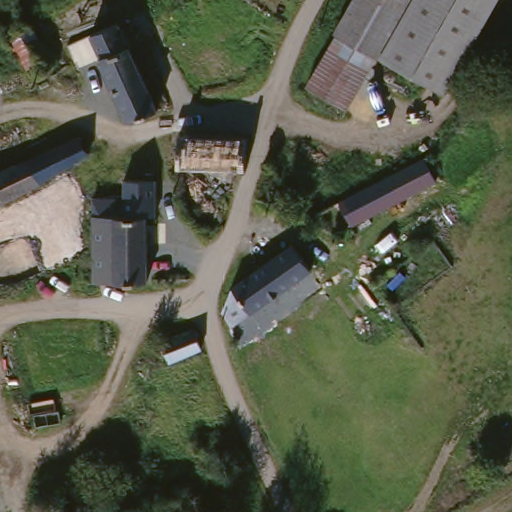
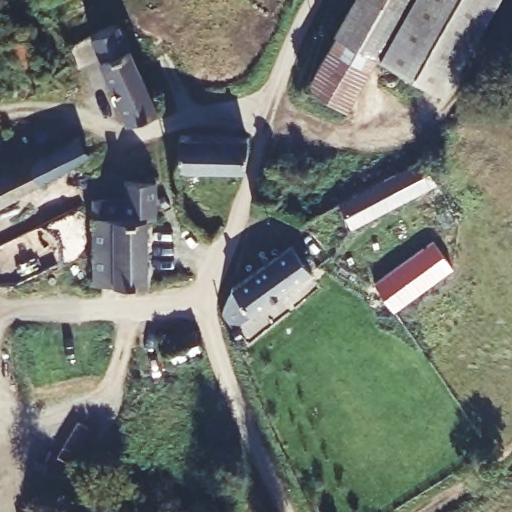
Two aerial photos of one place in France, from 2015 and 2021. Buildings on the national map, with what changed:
unchanged [(310,95),(353,0),(402,0),(376,57),(349,113),(310,95)]
unchanged [(481,0),(439,90),(376,57),(402,0),(481,0)]
unchanged [(156,104),(128,115),(93,36),(119,22),(156,104)]
unchanged [(29,24),(52,56),(32,71),(9,39),(29,24)]
unchanged [(241,135),(241,166),(178,168),(176,152),(176,135),(241,135)]
unchanged [(78,137),(89,160),(85,161),(9,198),(0,203),(0,176),(78,137)]
unchanged [(438,180),(345,225),(335,203),(403,168),(427,157),(438,180)]
unchanged [(119,199),(118,182),(152,181),(154,214),(145,214),(106,217),(89,218),(89,202),(119,199)]
unchanged [(106,217),(145,214),(149,284),(93,287),(89,218),(106,217)]
new [(376,282),(433,241),(452,268),(393,309),(376,282)]
unchanged [(233,286),(291,244),(311,270),(251,312),(231,327),(224,318),(221,313),(226,290),(233,286)]
unchanged [(191,326),(197,347),(166,358),(164,347),(159,336),(191,326)]
unchanged [(241,458),(209,470),(199,437),(228,427),(241,458)]

